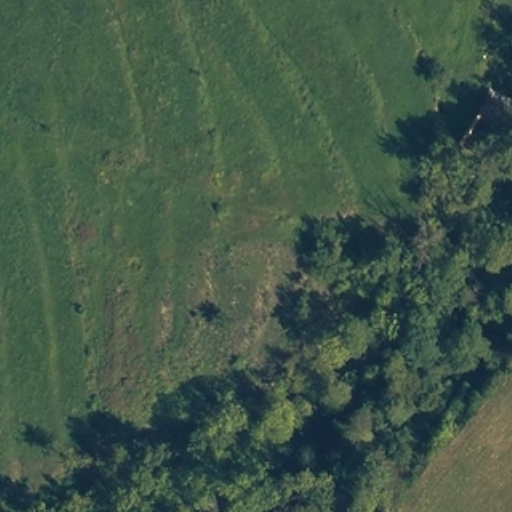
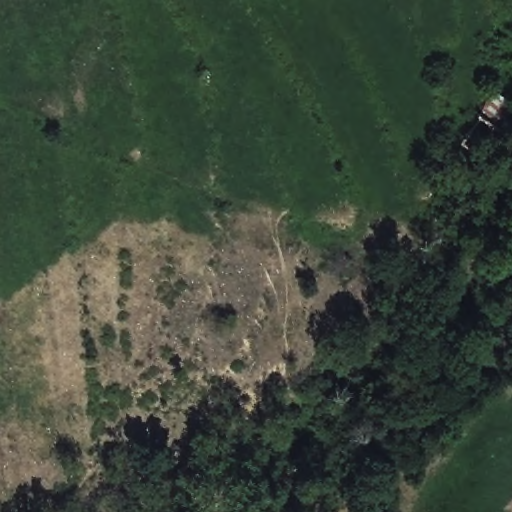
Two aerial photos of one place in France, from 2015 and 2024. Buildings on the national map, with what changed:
unchanged [(512,118),(508,129),(480,121),(494,92),(512,99),(512,118)]

